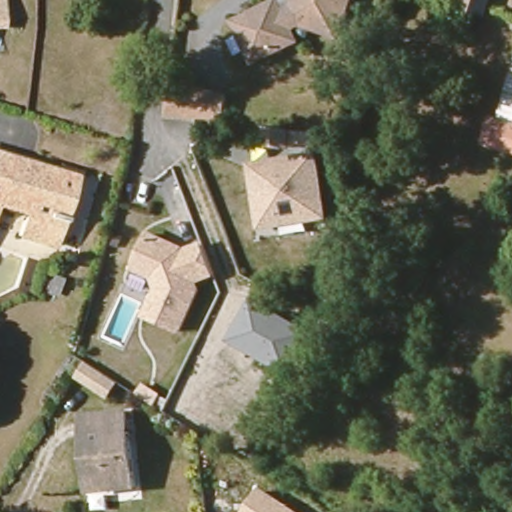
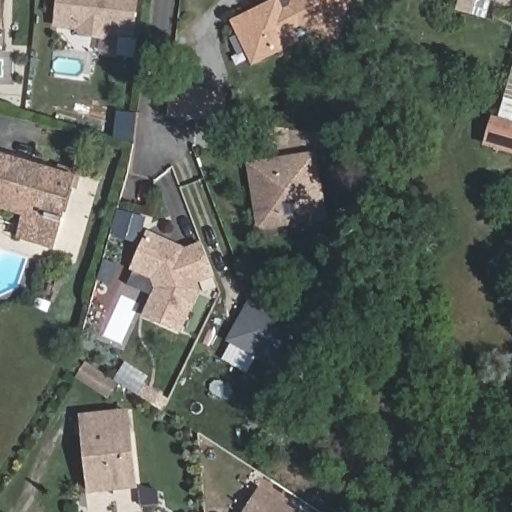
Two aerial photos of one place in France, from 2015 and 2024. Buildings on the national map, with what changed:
new [(135,38),(111,36),(106,41),(82,39),(76,31),(55,29),(59,0),(140,0),(135,38)]
unchanged [(340,42),(304,29),(293,34),(298,46),(257,66),(239,27),(281,8),(286,20),(297,14),(303,0),(356,0),(340,42)]
unchanged [(482,18),(454,10),(458,0),(488,0),(482,18)]
unchanged [(512,87),(512,118),(502,115),(512,87)]
unchanged [(223,121),(169,115),(171,100),(172,90),(185,91),(185,89),(226,95),(223,121)]
unchanged [(498,113),(502,115),(512,118),(512,147),(489,139),(498,113)]
unchanged [(317,153),(328,221),(260,234),(247,164),(317,153)]
unchanged [(74,183),(53,248),(18,238),(25,216),(0,208),(0,158),(74,183)]
unchanged [(186,248),(204,243),(217,278),(199,284),(202,290),(182,335),(142,319),(155,289),(151,280),(133,273),(148,233),(186,248)]
unchanged [(287,373),(225,338),(249,298),(311,332),(287,373)]
unchanged [(87,363),(119,383),(108,401),(76,378),(87,363)]
unchanged [(81,420),(127,416),(129,436),(89,440),(92,462),(86,463),(81,420)]
unchanged [(89,495),(86,463),(92,462),(89,440),(129,436),(135,490),(89,495)]
unchanged [(249,512),(263,491),(295,512),(249,512)]

